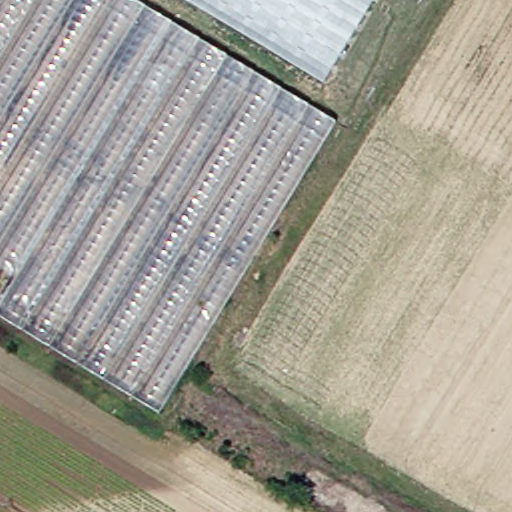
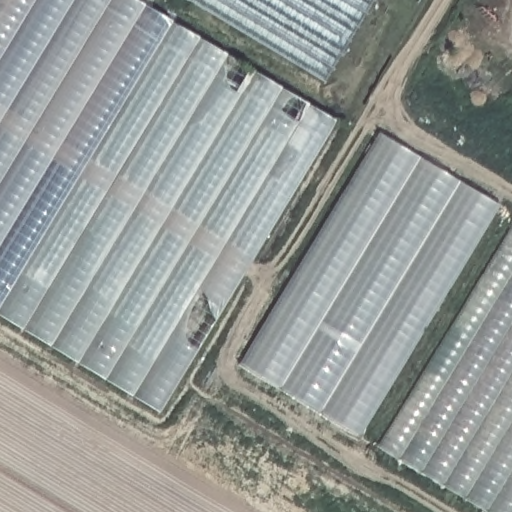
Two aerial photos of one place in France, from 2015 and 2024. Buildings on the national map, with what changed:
unchanged [(0,321),(0,0),(130,0),(326,119),(149,410),(0,321)]
unchanged [(311,78),(182,0),(359,0),(311,78)]
new [(499,207),(361,434),(243,363),(382,134),(499,207)]
new [(512,228),(512,512),(487,512),(381,448),(512,228)]

